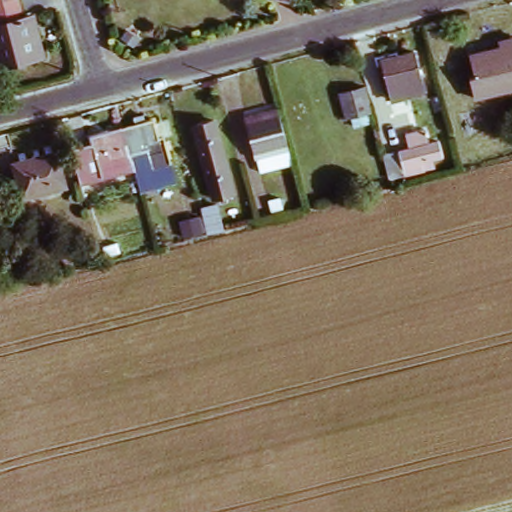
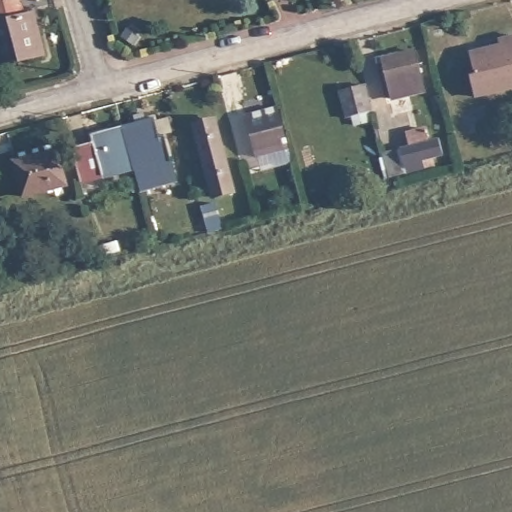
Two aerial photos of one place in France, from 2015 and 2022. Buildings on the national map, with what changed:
unchanged [(16,14),(26,12),(28,35),(35,32),(39,56),(0,61),(0,0),(15,0),(16,14)]
unchanged [(512,35),(512,86),(476,97),(471,77),(477,74),(471,54),(501,45),(499,39),(512,35)]
unchanged [(398,57),(397,54),(414,47),(425,87),(390,97),(381,63),(398,57)]
unchanged [(368,92),(376,116),(350,124),(344,99),(368,92)]
unchanged [(491,130),(464,135),(454,110),(481,105),(491,130)]
unchanged [(289,150),(258,158),(244,118),(277,109),(289,150)]
unchanged [(198,119),(216,113),(236,183),(218,190),(198,119)]
unchanged [(130,119),(146,115),(146,122),(153,120),(158,137),(163,136),(169,162),(147,169),(141,149),(134,152),(130,137),(127,127),(132,126),(130,119)]
unchanged [(98,139),(97,135),(127,127),(130,137),(134,152),(138,168),(109,177),(85,182),(76,150),(99,142),(98,139)]
unchanged [(444,160),(424,165),(424,173),(389,181),(378,158),(407,144),(406,132),(426,127),(429,141),(439,135),(444,160)]
unchanged [(15,157),(33,153),(54,147),(65,180),(41,186),(25,191),(15,157)]
unchanged [(218,199),(221,226),(213,227),(212,228),(208,229),(208,226),(206,203),(218,199)]
unchanged [(50,277),(44,278),(44,277),(43,270),(53,265),(55,274),(56,275),(50,277)]

